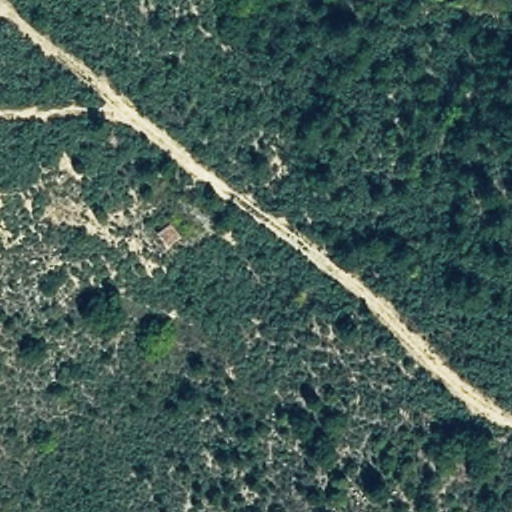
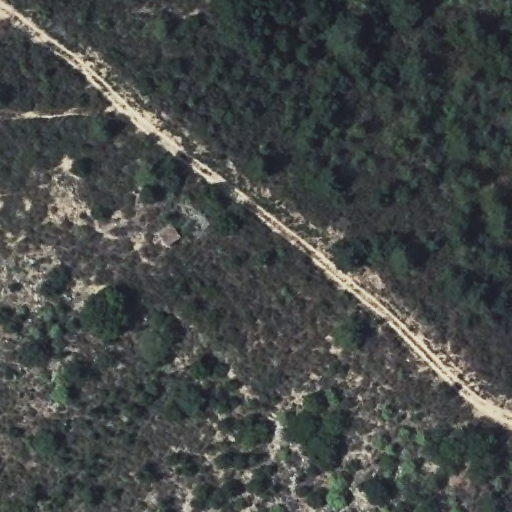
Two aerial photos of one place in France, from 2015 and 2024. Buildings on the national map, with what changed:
unchanged [(172,223),(180,236),(169,247),(158,232),(172,223)]

